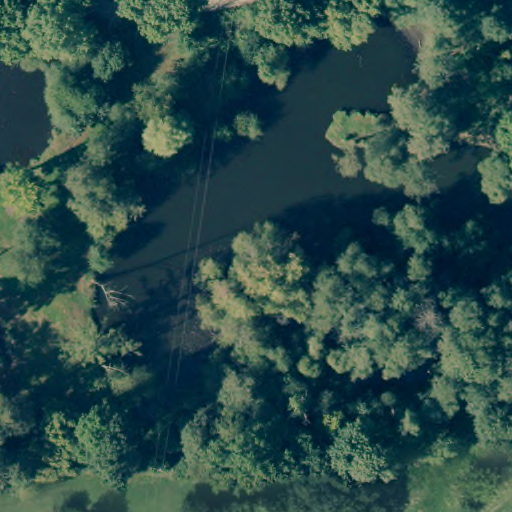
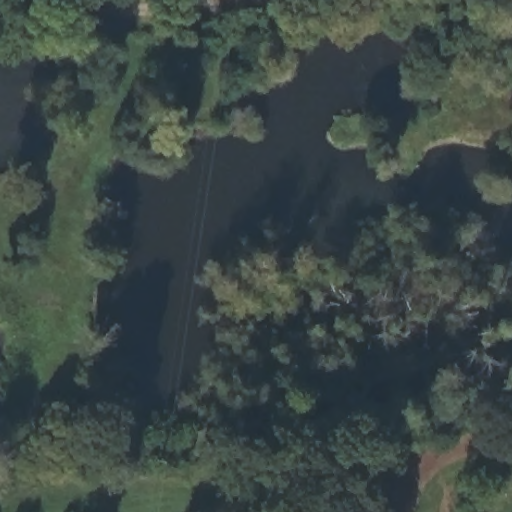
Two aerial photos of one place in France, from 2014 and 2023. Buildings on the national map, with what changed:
[]

